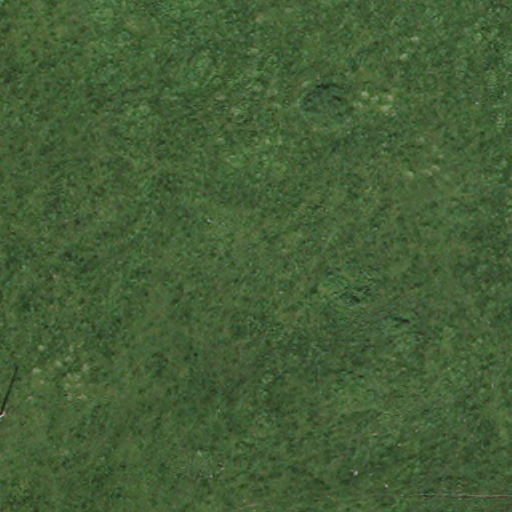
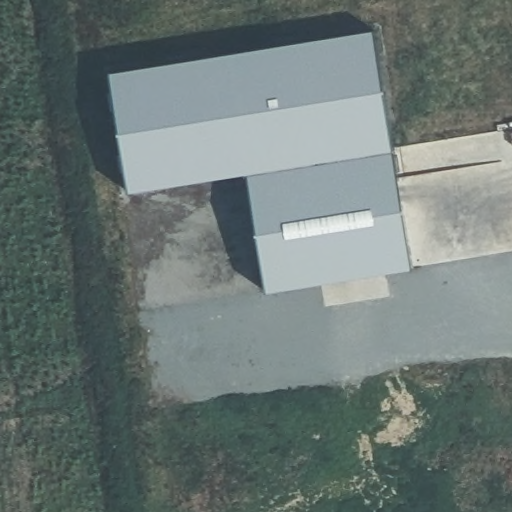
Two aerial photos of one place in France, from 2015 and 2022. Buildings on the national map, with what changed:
new [(373,29),(411,268),(266,291),(248,174),(128,192),(110,72),(373,29)]

